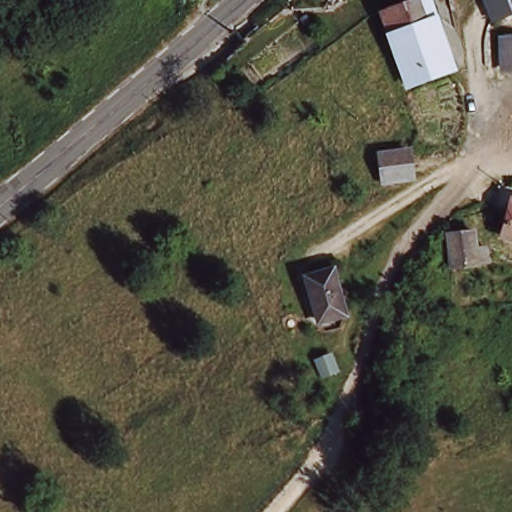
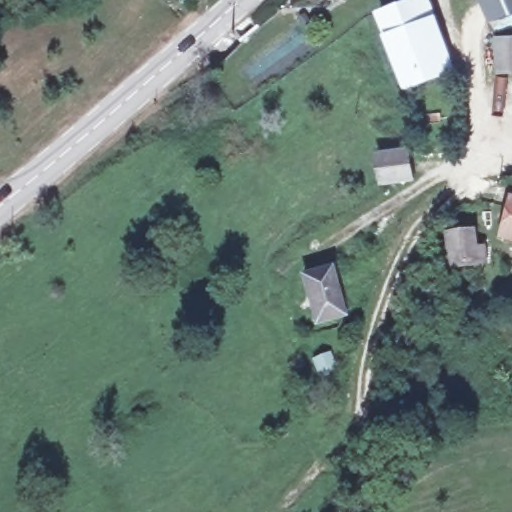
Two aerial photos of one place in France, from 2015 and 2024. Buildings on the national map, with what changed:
unchanged [(382,14),(414,0),(427,0),(434,19),(429,22),(446,70),(410,85),(382,14)]
unchanged [(489,20),(482,0),(512,0),(512,12),(489,20)]
unchanged [(502,65),(499,37),(512,37),(512,64),(502,65)]
unchanged [(412,180),(384,184),(380,156),(409,153),(412,180)]
unchanged [(497,192),(512,196),(512,232),(489,227),(497,192)]
unchanged [(447,234),(473,230),(476,245),(485,244),(487,260),(452,265),(447,234)]
unchanged [(311,270),(340,268),(342,312),(313,313),(311,270)]

